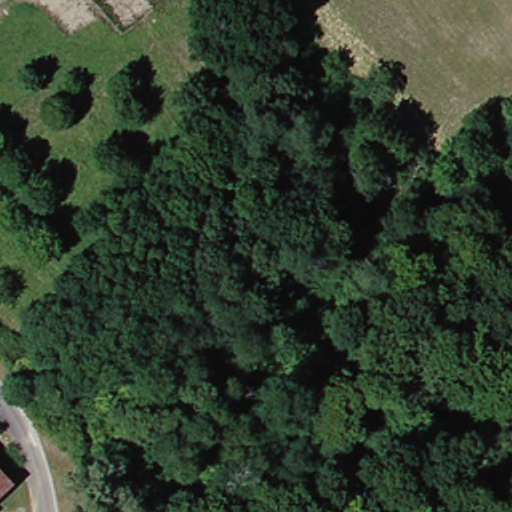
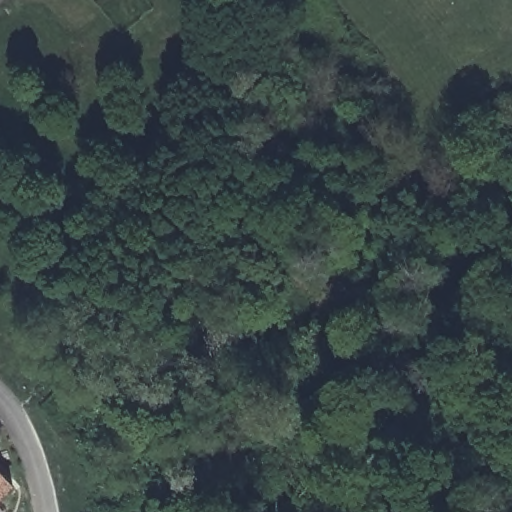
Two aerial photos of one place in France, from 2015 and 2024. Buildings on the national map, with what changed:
unchanged [(26,472),(0,497),(0,446),(26,472)]
unchanged [(26,472),(41,488),(15,512),(0,512),(0,497),(26,472)]

